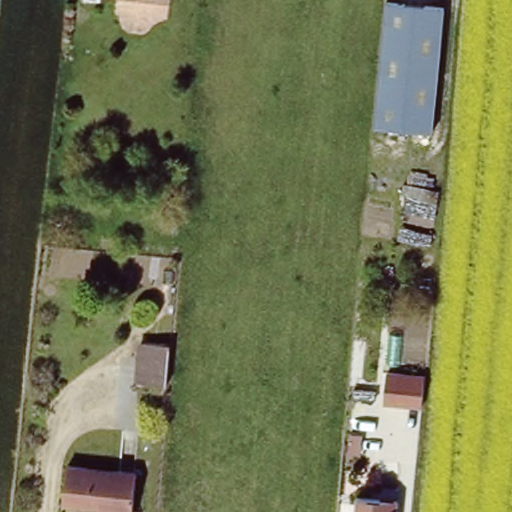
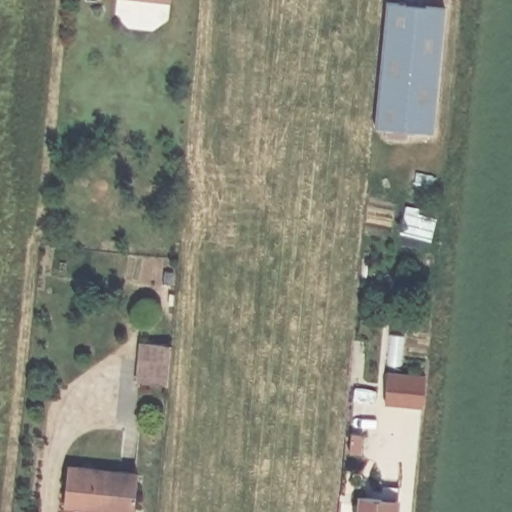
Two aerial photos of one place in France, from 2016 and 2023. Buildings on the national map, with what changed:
unchanged [(382,0),(417,0),(441,2),(430,127),(371,121),(382,0)]
unchanged [(141,343),(142,338),(169,340),(168,345),(165,383),(137,380),(141,343)]
unchanged [(383,404),(385,372),(423,375),(420,407),(383,404)]
unchanged [(66,505),(70,465),(138,471),(134,508),(134,512),(101,512),(102,508),(66,505)]
unchanged [(400,497),(399,512),(359,512),(360,495),(400,497)]

